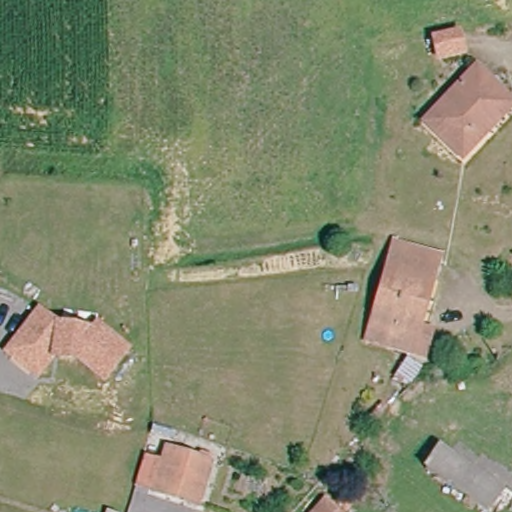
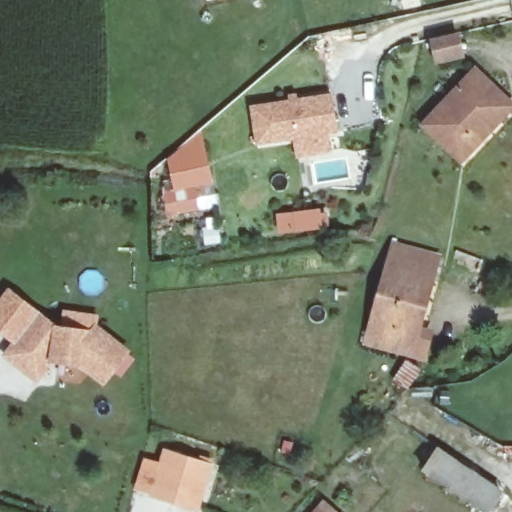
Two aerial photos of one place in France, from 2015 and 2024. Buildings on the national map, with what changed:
unchanged [(457,32),(460,32),(465,52),(440,57),(436,37),(457,32)]
unchanged [(486,131),(455,160),(421,122),(476,72),(503,102),(510,109),(486,131)]
new [(258,142),(253,105),(330,94),(336,130),(258,142)]
new [(200,130),(214,183),(172,189),(165,159),(200,130)]
new [(172,189),(214,183),(219,207),(166,217),(161,191),(172,189)]
new [(325,207),(327,229),(277,235),(275,213),(325,207)]
unchanged [(408,356),(364,342),(375,306),(392,244),(436,255),(408,356)]
unchanged [(92,372),(77,361),(53,357),(36,377),(6,353),(40,312),(57,327),(94,332),(98,327),(129,352),(110,375),(104,382),(92,372)]
unchanged [(413,376),(400,390),(389,378),(404,363),(413,376)]
unchanged [(503,492),(491,511),(425,467),(435,447),(503,492)]
unchanged [(207,462),(194,509),(152,496),(165,451),(207,462)]
unchanged [(309,512),(320,501),(334,512),(309,512)]

